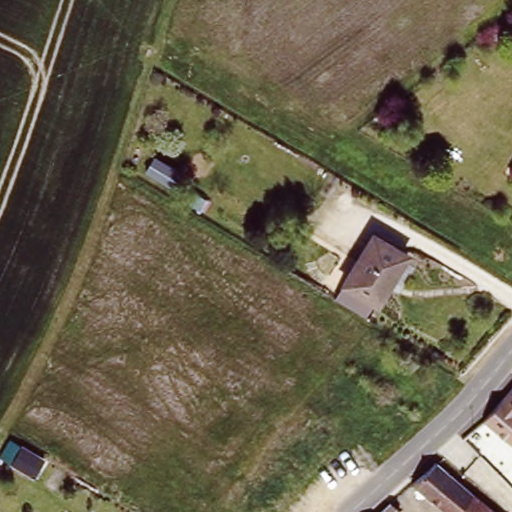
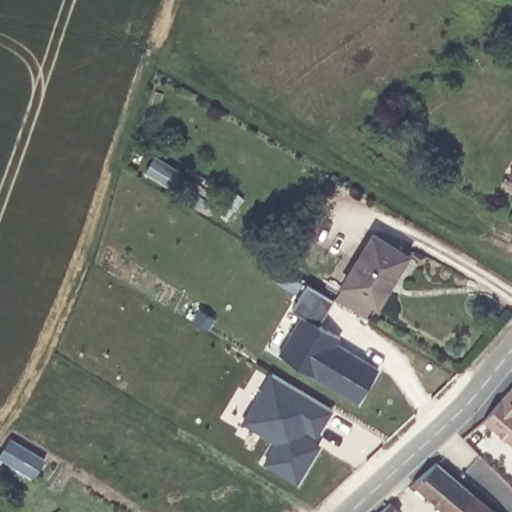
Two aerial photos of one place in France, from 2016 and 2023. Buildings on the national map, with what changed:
unchanged [(408,255),(378,305),(346,285),(376,235),(408,255)]
new [(318,326),(339,339),(335,345),(378,371),(360,403),(277,355),(301,313),(292,307),(307,282),(333,300),(318,326)]
new [(270,370),(333,406),(314,440),(321,443),(299,483),(263,462),(274,443),(240,422),(270,370)]
unchanged [(511,380),(512,380),(512,441),(480,415),(511,380)]
unchanged [(490,512),(453,512),(415,481),(436,460),(495,507),(490,512)]
unchanged [(392,499),(403,508),(400,512),(378,512),(392,499)]
unchanged [(495,507),(500,512),(490,512),(495,507)]

